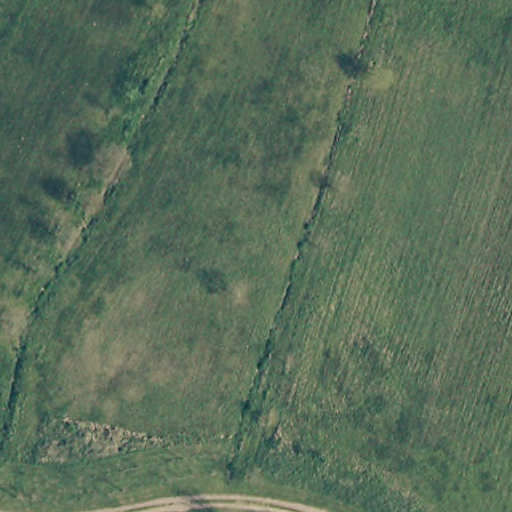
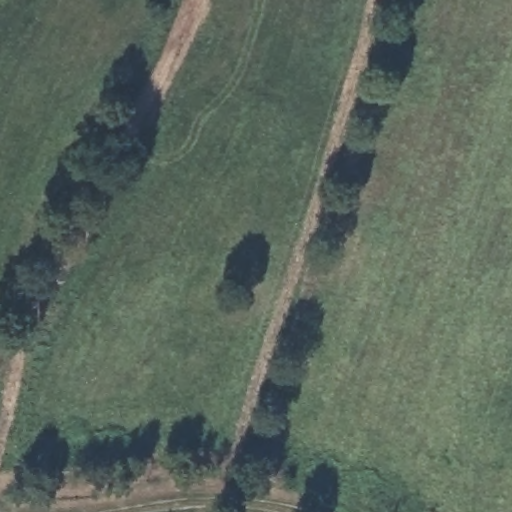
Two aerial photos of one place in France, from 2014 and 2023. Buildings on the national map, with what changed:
[]

